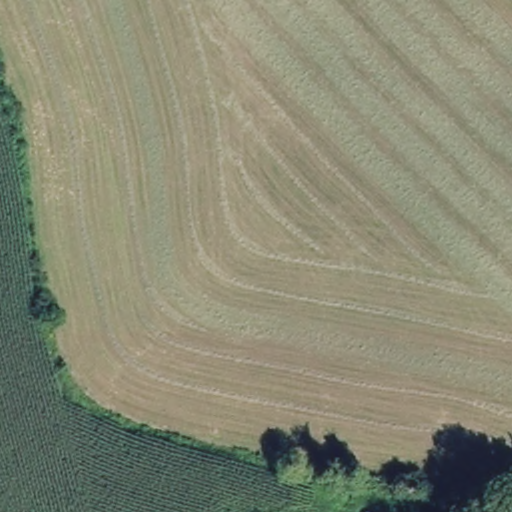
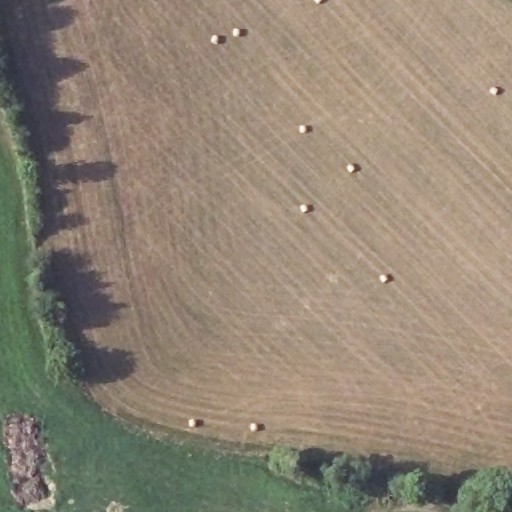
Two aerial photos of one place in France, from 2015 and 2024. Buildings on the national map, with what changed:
[]

